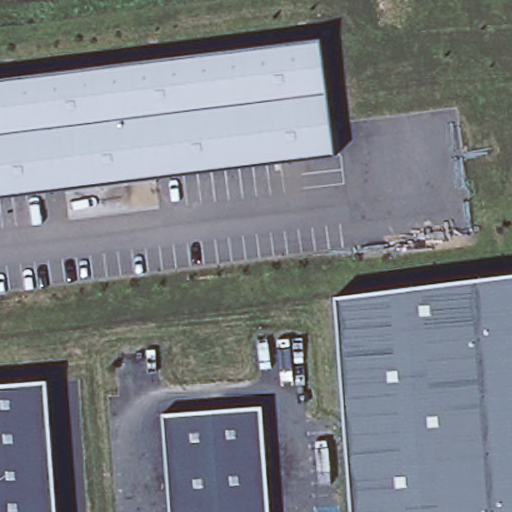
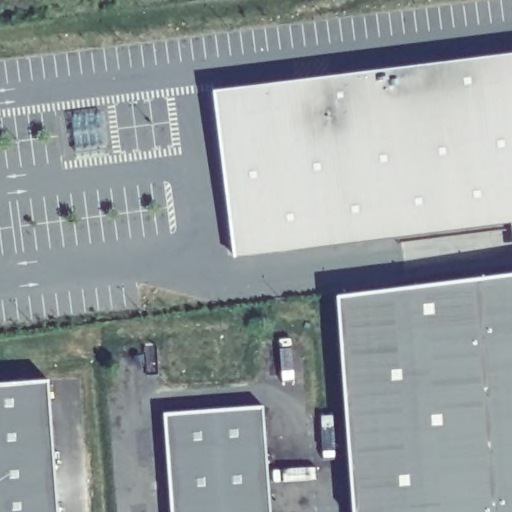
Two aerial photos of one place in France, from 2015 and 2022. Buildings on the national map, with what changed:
demolished [(335,153),(0,194),(0,77),(320,38),(335,153)]
new [(233,257),(212,90),(512,53),(512,221),(233,257)]
unchanged [(512,274),(512,512),(353,512),(337,295),(512,274)]
unchanged [(57,512),(0,512),(0,383),(48,379),(57,512)]
unchanged [(262,405),(269,512),(172,512),(164,412),(262,405)]

